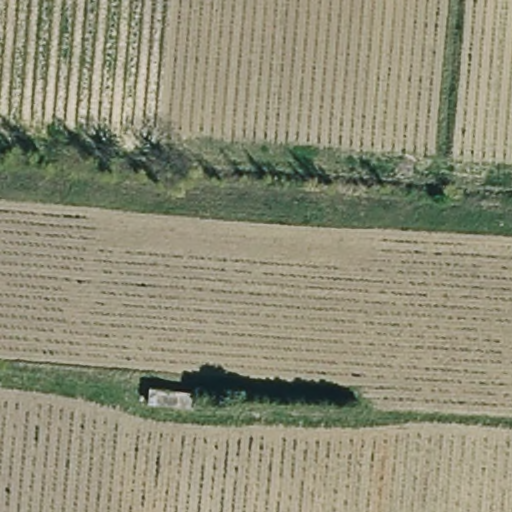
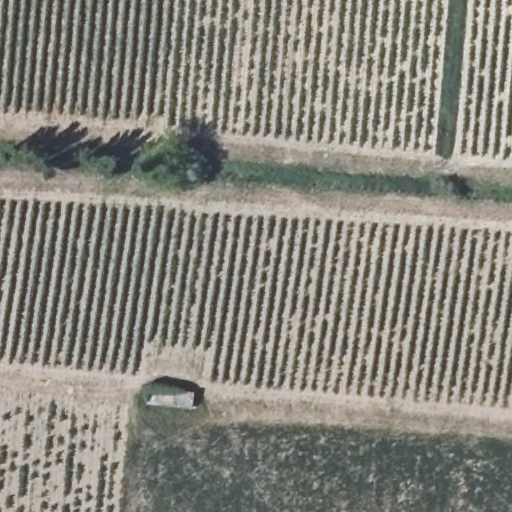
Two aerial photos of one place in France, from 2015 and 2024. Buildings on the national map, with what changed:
unchanged [(152,384),(190,390),(188,409),(151,403),(152,384)]

